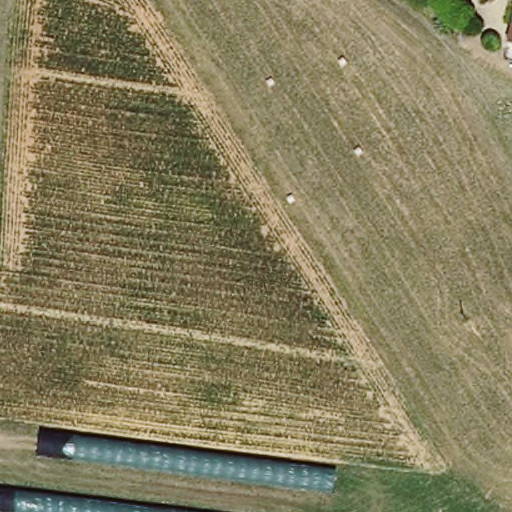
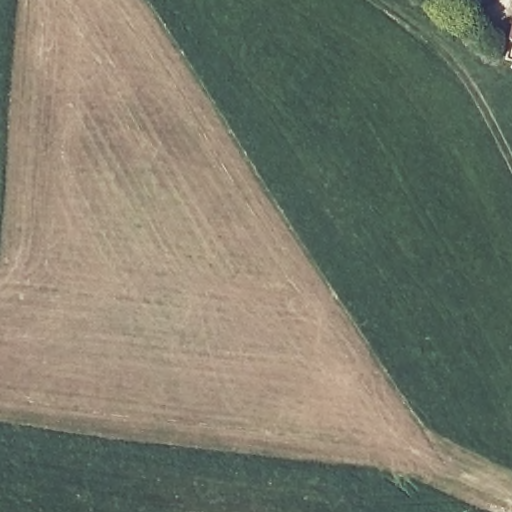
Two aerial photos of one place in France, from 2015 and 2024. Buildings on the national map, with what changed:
unchanged [(512,22),(512,48),(505,45),(512,22)]
unchanged [(32,459),(35,434),(332,471),(327,496),(32,459)]
demolished [(170,512),(0,512),(0,492),(170,512)]

